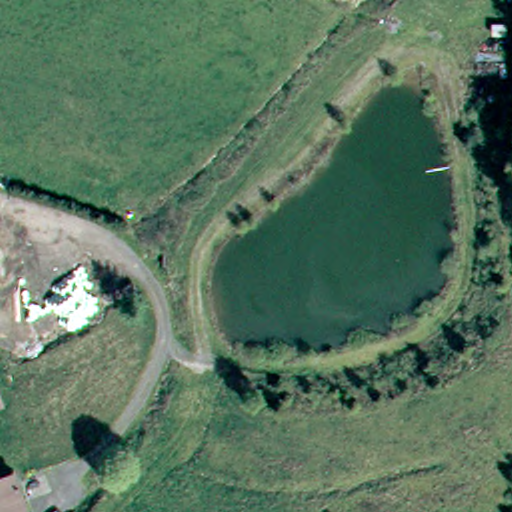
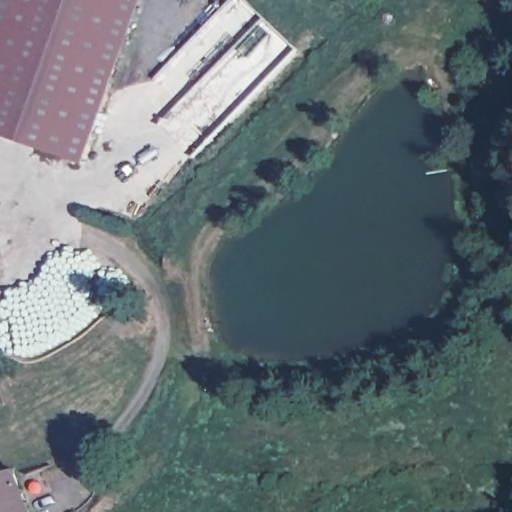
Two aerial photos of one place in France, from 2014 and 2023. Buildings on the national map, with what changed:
new [(87,162),(0,134),(0,7),(2,0),(143,0),(87,162)]
unchanged [(0,512),(0,473),(13,468),(28,512),(0,512)]

